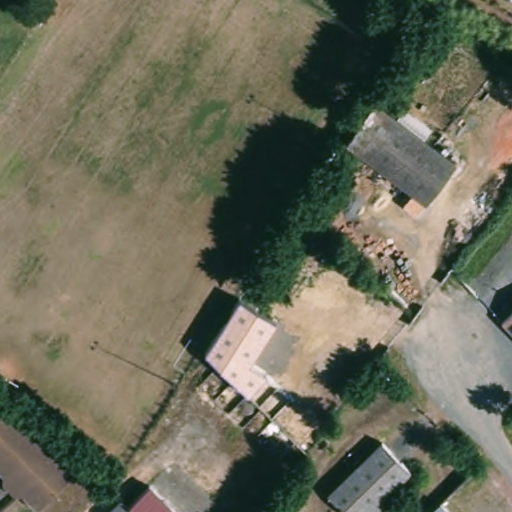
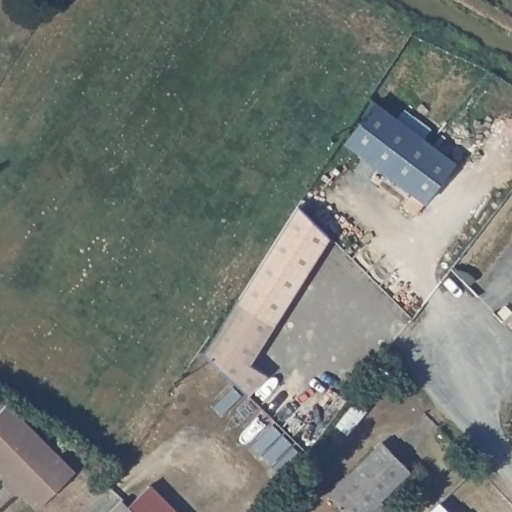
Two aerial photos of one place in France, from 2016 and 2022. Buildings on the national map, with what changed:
unchanged [(374,101),(452,163),(421,202),(342,140),(374,101)]
new [(329,236),(275,323),(239,299),(299,206),(329,236)]
unchanged [(275,323),(249,365),(268,377),(251,398),(205,353),(239,299),(275,323)]
unchanged [(497,322),(512,308),(512,337),(503,328),(497,322)]
unchanged [(0,482),(0,406),(6,400),(71,467),(33,504),(19,489),(9,491),(0,482)]
unchanged [(371,512),(345,512),(329,495),(382,444),(410,472),(371,512)]
unchanged [(134,512),(128,506),(150,484),(179,512),(134,512)]
unchanged [(134,512),(103,512),(119,496),(134,512)]

